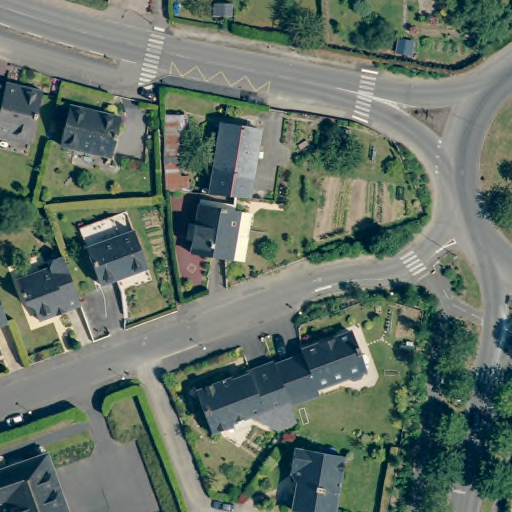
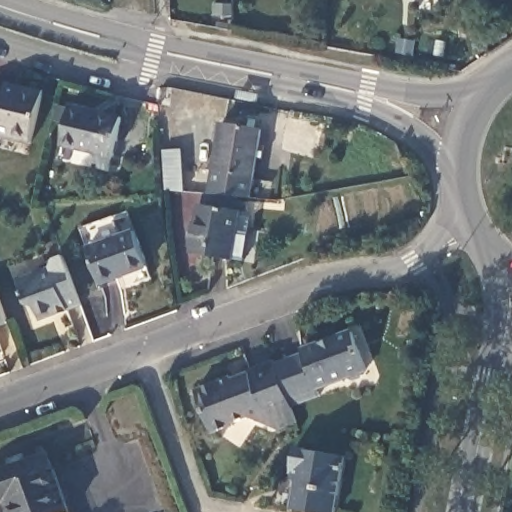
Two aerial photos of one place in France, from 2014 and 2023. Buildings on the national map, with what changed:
unchanged [(41,97),(31,142),(0,135),(0,88),(41,97)]
unchanged [(122,119),(112,156),(61,143),(70,106),(122,119)]
unchanged [(165,116),(187,115),(186,140),(180,141),(179,176),(189,177),(189,193),(164,191),(165,116)]
unchanged [(206,191),(220,122),(261,130),(248,199),(206,191)]
unchanged [(251,213),(243,262),(190,253),(198,204),(251,213)]
unchanged [(99,284),(86,248),(135,230),(148,266),(99,284)]
unchanged [(61,311),(60,308),(54,310),(55,313),(37,320),(35,308),(25,303),(16,279),(50,266),(55,256),(64,253),(82,303),(61,311)]
unchanged [(0,323),(0,293),(9,320),(0,323)]
unchanged [(303,348),(322,342),(337,336),(355,329),(369,369),(366,373),(355,378),(347,375),(320,385),(321,393),(292,404),(277,362),(305,352),(303,348)]
unchanged [(280,431),(271,427),(251,416),(235,422),(236,424),(215,432),(199,388),(233,375),(235,377),(251,371),(250,368),(275,358),(277,362),(292,404),(296,417),(300,424),(280,431)]
unchanged [(0,512),(0,452),(52,433),(80,512),(0,512)]
unchanged [(293,512),(297,486),(289,475),(291,449),(343,458),(334,512),(293,512)]

